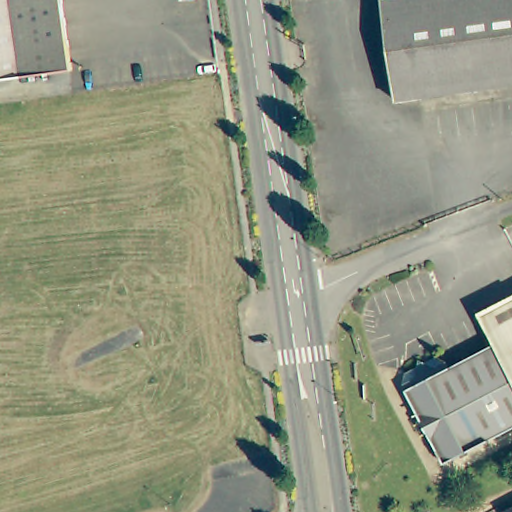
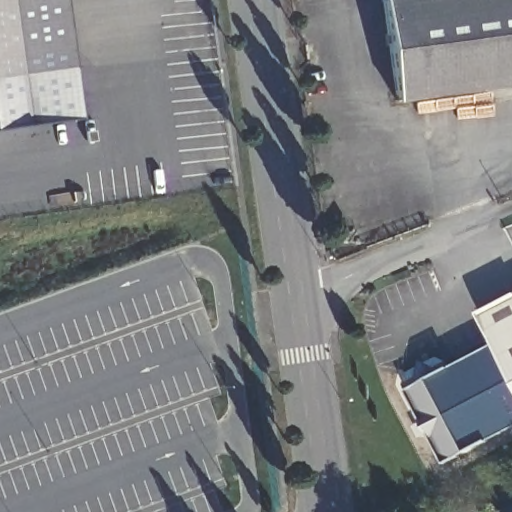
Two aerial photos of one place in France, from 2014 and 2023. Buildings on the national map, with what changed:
unchanged [(27,77),(0,81),(0,0),(17,0),(27,77)]
unchanged [(17,0),(68,0),(78,70),(27,77),(17,0)]
unchanged [(401,100),(388,0),(392,0),(512,0),(512,85),(401,100)]
new [(71,71),(77,116),(0,129),(0,81),(27,77),(71,71)]
unchanged [(419,423),(426,420),(411,390),(409,384),(410,372),(441,356),(451,361),(454,367),(500,343),(483,312),(512,298),(512,429),(448,463),(432,431),(425,435),(419,423)]
unchanged [(507,512),(512,509),(512,512),(507,512)]

